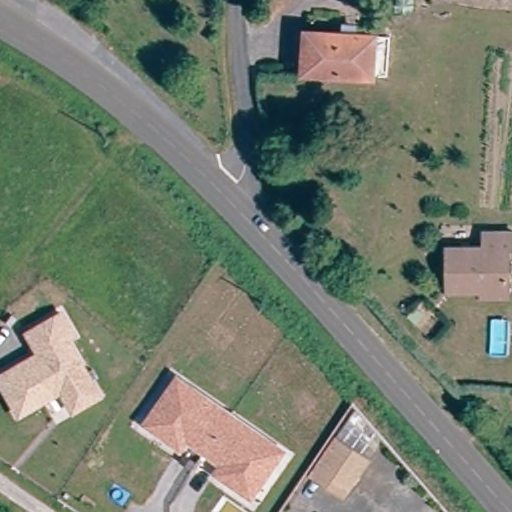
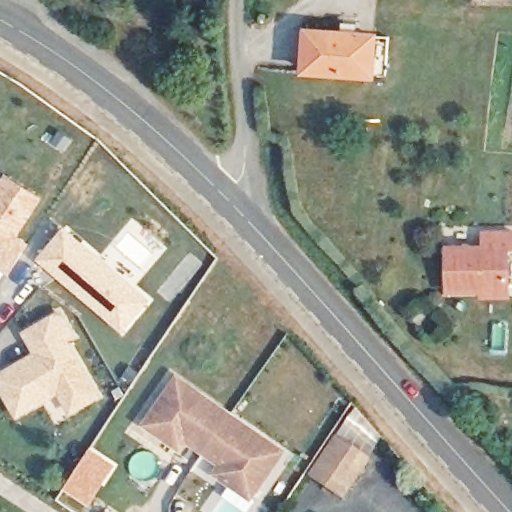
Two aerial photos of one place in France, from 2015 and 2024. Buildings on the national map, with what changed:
unchanged [(370,72),(302,74),(302,38),(369,36),(370,72)]
new [(20,234),(31,241),(11,274),(0,268),(0,184),(7,173),(45,197),(20,234)]
new [(67,228),(149,301),(122,330),(41,257),(67,228)]
unchanged [(505,290),(444,291),(443,249),(476,249),(476,233),(510,233),(510,249),(504,249),(505,290)]
unchanged [(17,410),(0,379),(0,371),(39,350),(27,328),(62,310),(74,332),(66,336),(97,394),(71,408),(59,387),(17,410)]
unchanged [(284,445),(252,490),(219,466),(226,457),(190,431),(183,440),(150,416),(182,372),(284,445)]
unchanged [(341,449),(320,481),(302,468),(329,429),(346,441),(341,449)]
unchanged [(366,455),(339,494),(320,481),(341,449),(346,441),(366,455)]

